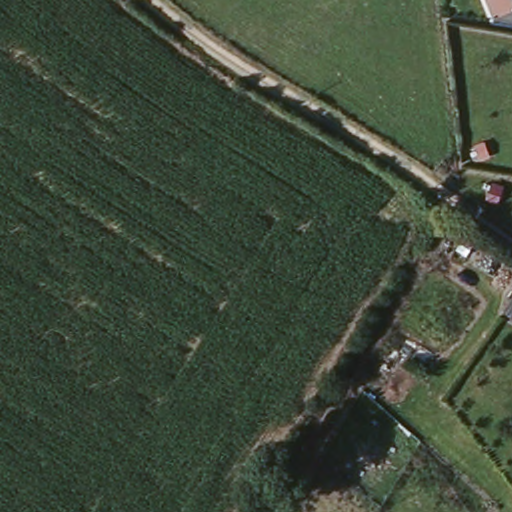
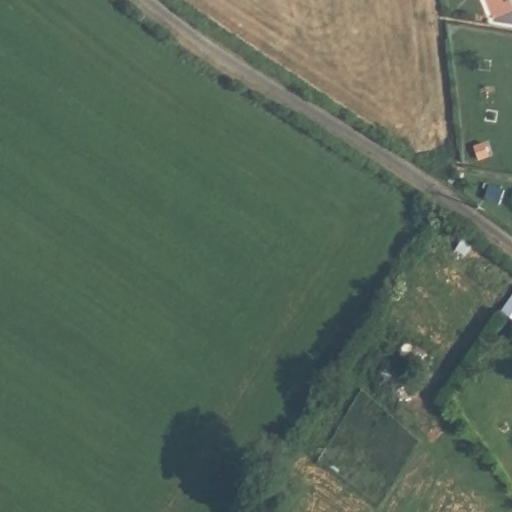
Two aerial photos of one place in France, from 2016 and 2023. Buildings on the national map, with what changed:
unchanged [(512,316),(504,310),(512,296),(512,316)]

